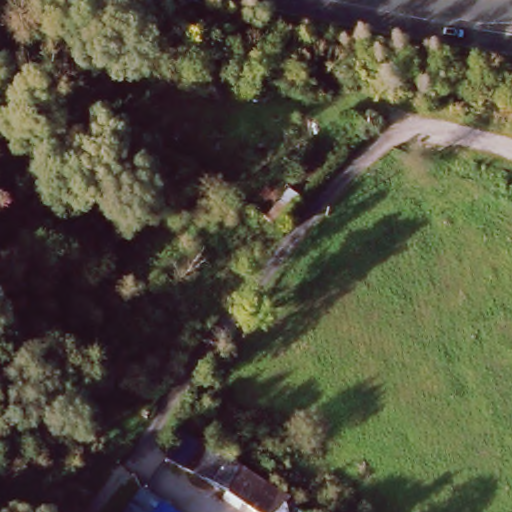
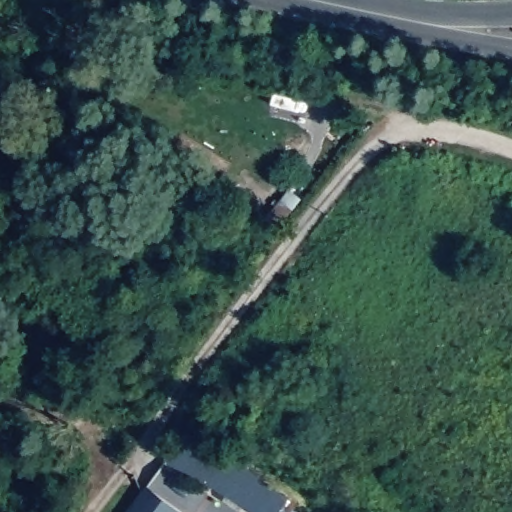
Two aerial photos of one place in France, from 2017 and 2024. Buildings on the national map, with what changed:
unchanged [(275,227),(264,216),(288,191),(301,197),(275,227)]
unchanged [(249,505),(233,496),(172,462),(185,439),(186,437),(187,435),(291,495),(289,498),(281,512),(261,512),(249,505)]
unchanged [(147,488),(182,512),(130,512),(147,488)]

